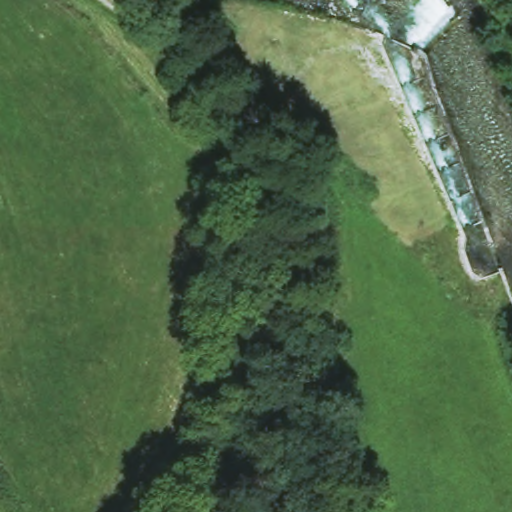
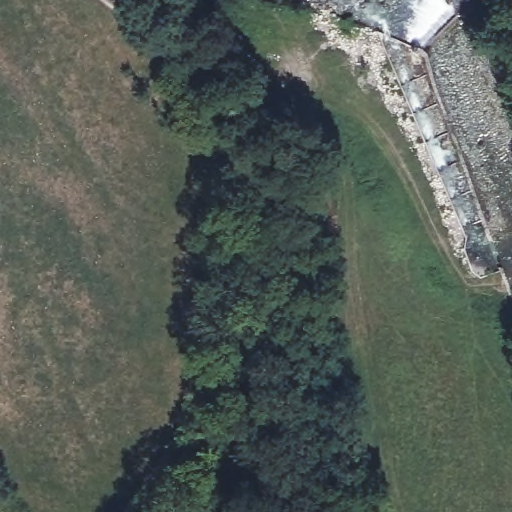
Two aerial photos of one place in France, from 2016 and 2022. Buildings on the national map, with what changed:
[]

